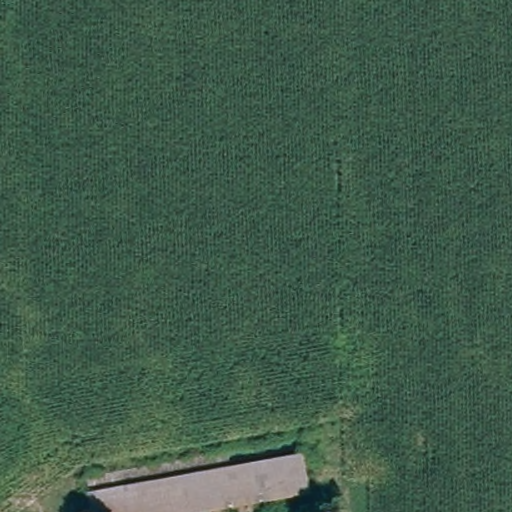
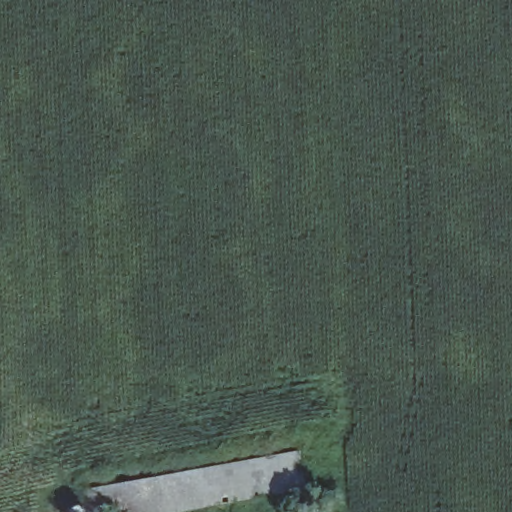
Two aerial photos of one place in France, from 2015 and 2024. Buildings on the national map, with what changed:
unchanged [(217,467),(299,451),(306,484),(158,512),(94,512),(89,491),(217,467)]

